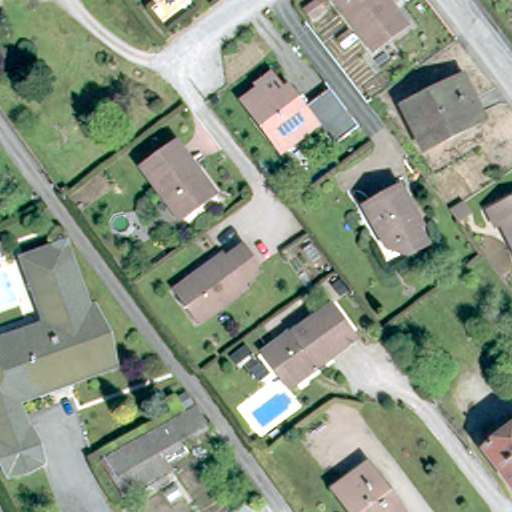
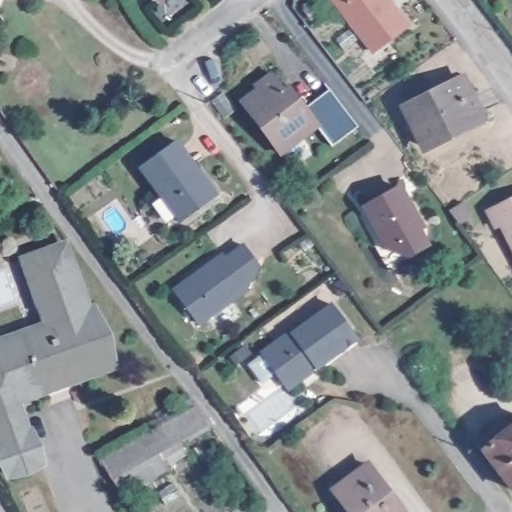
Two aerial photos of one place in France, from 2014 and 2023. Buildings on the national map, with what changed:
unchanged [(375,53),(334,0),(388,0),(408,26),(375,53)]
unchanged [(303,10),(313,4),(320,12),(310,19),(303,10)]
unchanged [(317,126),(282,154),(242,101),(258,89),(255,83),(270,71),(282,89),(288,84),(305,105),(330,86),(360,126),(333,147),(317,126)]
unchanged [(425,149),(403,107),(463,77),(485,119),(425,149)]
unchanged [(142,168),(178,141),(195,165),(200,161),(223,193),(213,200),(182,222),(142,168)]
unchanged [(418,232),(427,246),(410,255),(402,241),(390,247),(367,209),(402,189),(424,228),(418,232)]
unchanged [(498,221),(491,224),(483,211),(512,196),(512,246),(498,221)]
unchanged [(456,221),(448,211),(460,204),(467,215),(456,221)]
unchanged [(253,276),(245,283),(248,288),(200,324),(176,291),(197,276),(194,273),(222,252),(226,257),(245,243),(258,262),(253,276)]
unchanged [(47,331),(25,267),(60,255),(82,318),(88,316),(107,369),(45,392),(12,344),(47,331)]
unchanged [(333,301),(322,284),(333,276),(345,293),(333,301)]
unchanged [(280,386),(257,355),(288,331),(290,335),(327,307),(353,341),(313,370),(284,392),(280,386)]
unchanged [(3,474),(0,464),(0,348),(12,344),(45,392),(10,404),(22,439),(25,437),(33,460),(37,470),(5,480),(3,474)]
unchanged [(235,365),(230,357),(235,353),(240,360),(235,365)]
unchanged [(180,401),(188,397),(192,405),(183,409),(180,401)]
unchanged [(160,460),(164,472),(120,486),(105,457),(197,410),(208,434),(160,460)]
unchanged [(483,450),(487,447),(480,439),(505,420),(512,428),(512,489),(483,450)]
unchanged [(335,489),(369,465),(404,512),(352,512),(335,489)]

